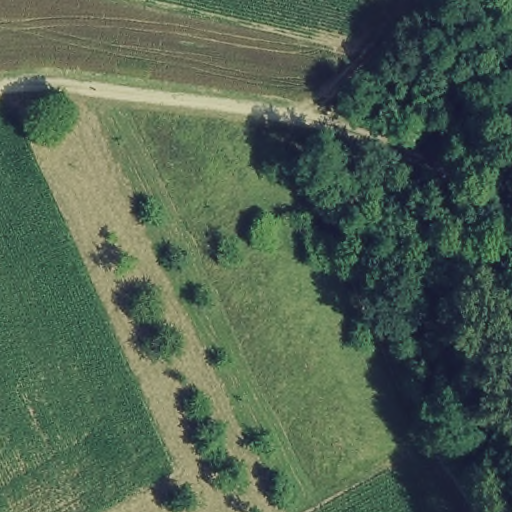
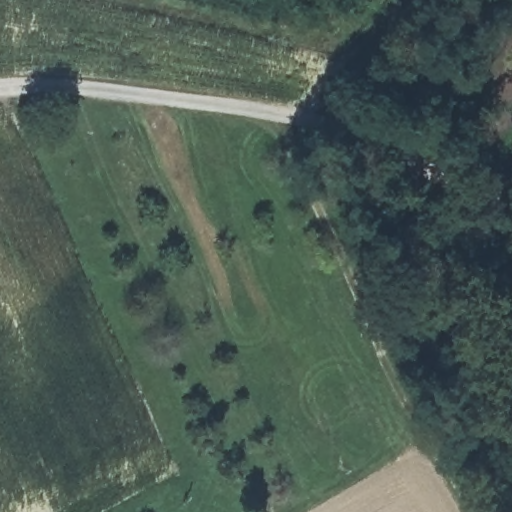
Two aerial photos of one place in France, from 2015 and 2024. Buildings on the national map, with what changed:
[]

